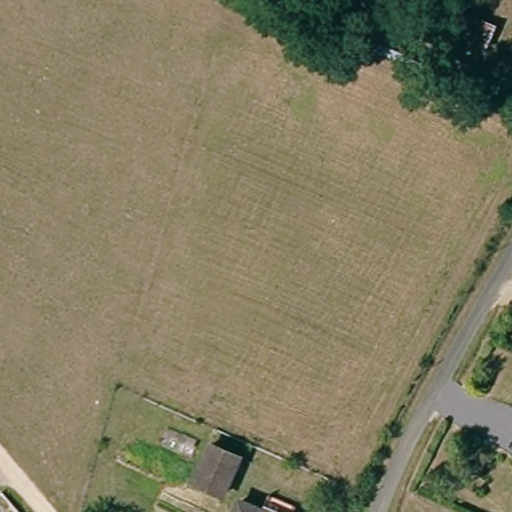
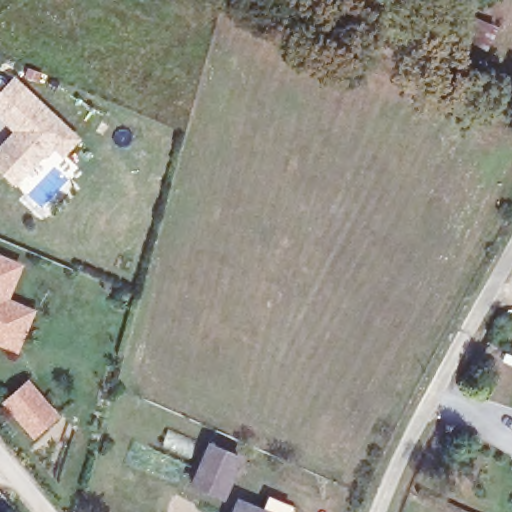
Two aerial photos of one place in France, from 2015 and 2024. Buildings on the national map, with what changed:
unchanged [(423,5),(418,17),(370,0),(412,0),(423,5)]
unchanged [(452,33),(465,1),(495,15),(485,54),(452,33)]
new [(81,140),(63,158),(54,150),(16,185),(0,171),(0,146),(13,132),(0,120),(0,92),(15,76),(81,140)]
new [(24,264),(9,298),(35,310),(19,353),(0,345),(0,254),(24,264)]
new [(61,417),(33,440),(1,402),(29,378),(61,417)]
unchanged [(227,492),(198,480),(214,443),(242,455),(227,492)]
unchanged [(267,502),(289,512),(263,512),(267,502)]
unchanged [(238,509),(245,512),(237,512),(238,509)]

